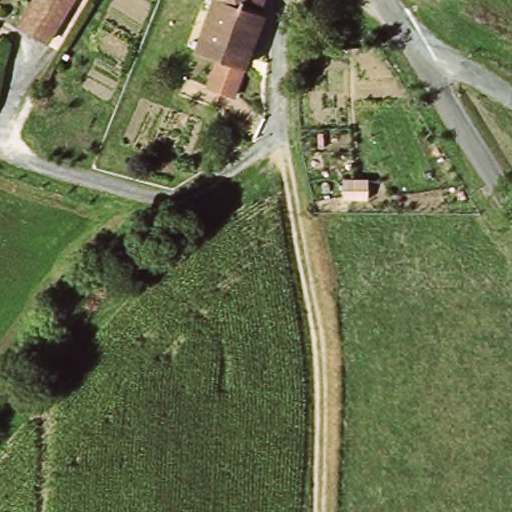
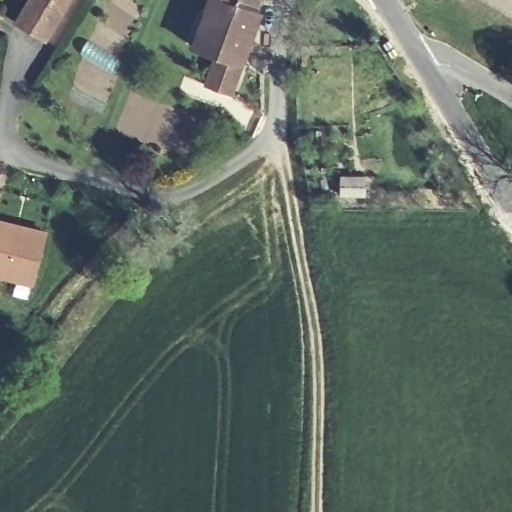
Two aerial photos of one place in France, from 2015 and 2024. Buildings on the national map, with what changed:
unchanged [(22,16),(33,0),(78,0),(53,37),(22,16)]
unchanged [(215,90),(223,56),(201,47),(219,0),(267,0),(263,19),(240,97),(215,90)]
unchanged [(366,196),(342,196),(342,175),(367,176),(366,196)]
new [(35,287),(0,278),(0,218),(49,230),(35,287)]

